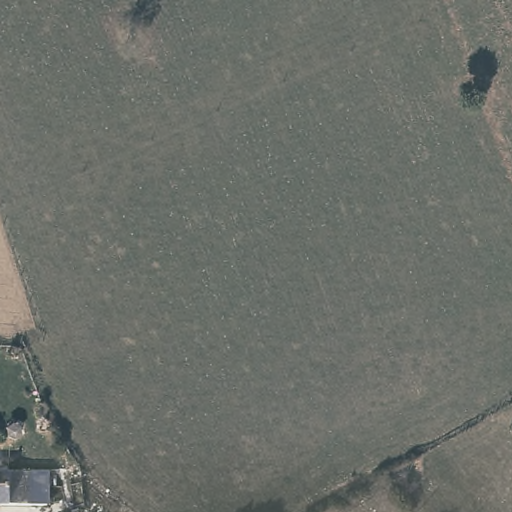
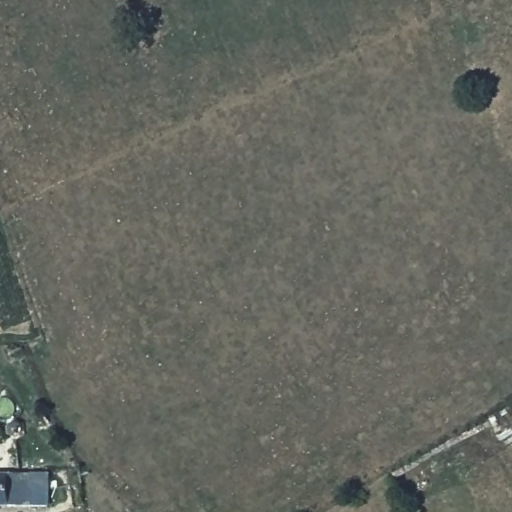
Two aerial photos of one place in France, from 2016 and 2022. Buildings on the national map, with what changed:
unchanged [(33,473),(34,503),(0,504),(0,473),(33,473)]

